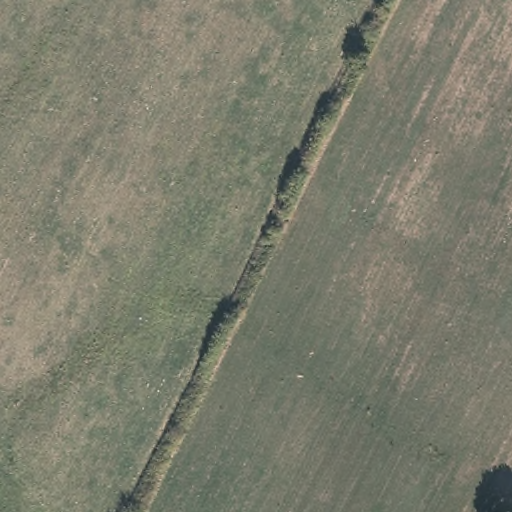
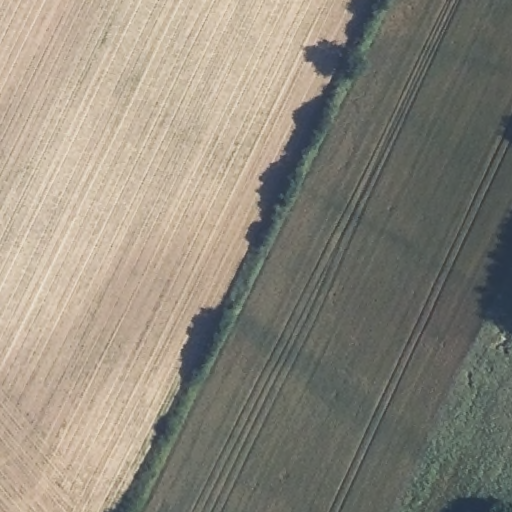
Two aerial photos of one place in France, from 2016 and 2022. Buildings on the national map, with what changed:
[]

